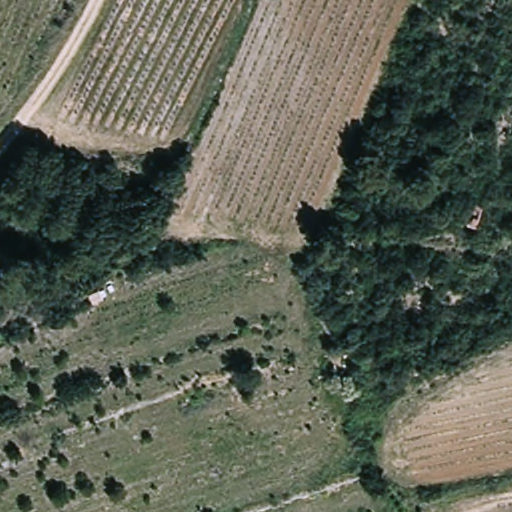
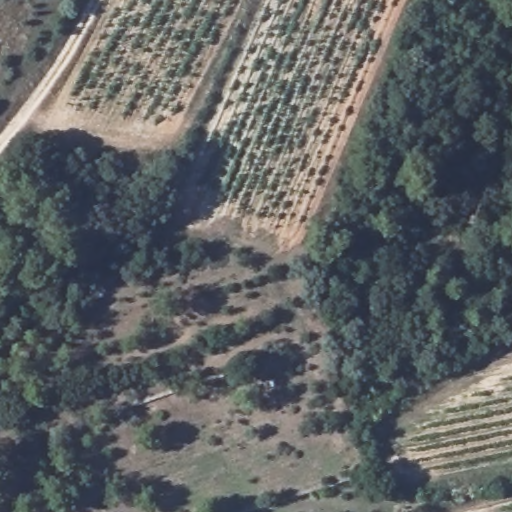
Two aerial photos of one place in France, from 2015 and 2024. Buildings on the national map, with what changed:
unchanged [(479,229),(456,222),(463,198),(486,204),(479,229)]

